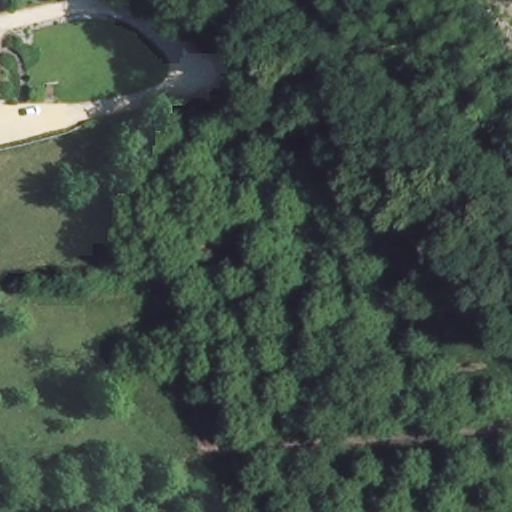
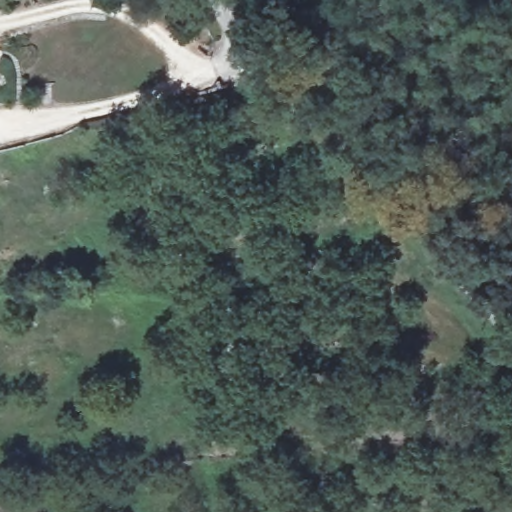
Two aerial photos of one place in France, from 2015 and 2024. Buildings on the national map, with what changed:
[]

